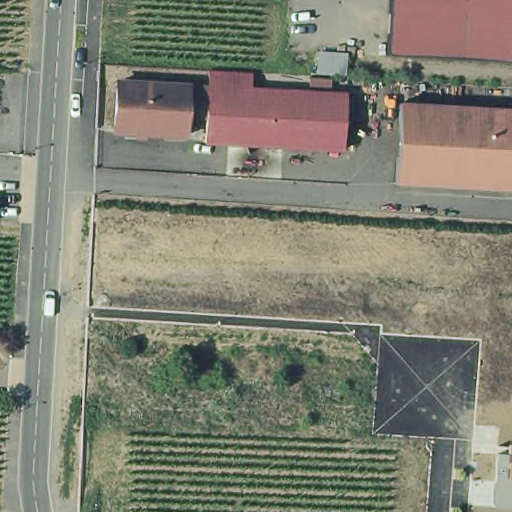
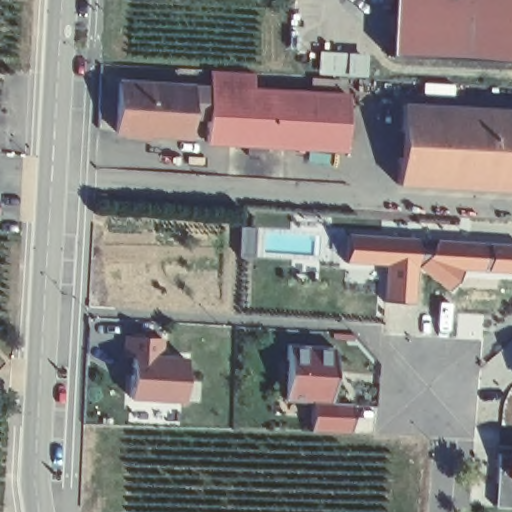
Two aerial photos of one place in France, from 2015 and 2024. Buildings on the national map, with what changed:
unchanged [(387,55),(387,46),(390,0),(512,0),(512,63),(387,55)]
unchanged [(254,68),(254,85),(347,91),(345,145),(209,137),(210,113),(191,112),(190,132),(120,128),(123,78),(192,83),(211,83),(212,66),(254,68)]
unchanged [(512,104),(512,185),(396,179),(400,98),(512,104)]
new [(512,244),(512,273),(465,271),(450,289),(418,265),(415,303),(385,302),(385,264),(348,260),(350,234),(512,244)]
new [(161,339),(160,359),(185,360),(185,405),(129,401),(132,357),(123,357),(125,337),(161,339)]
new [(350,434),(308,431),(310,401),(285,400),(289,344),(335,347),(331,402),(352,404),(350,434)]
unchanged [(493,508),(497,455),(507,455),(508,442),(512,442),(512,509),(493,508)]

